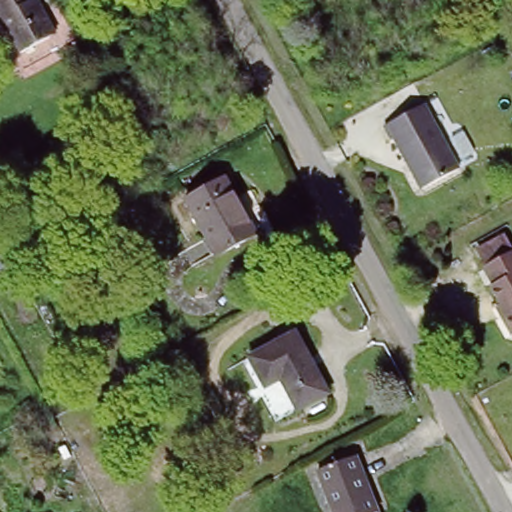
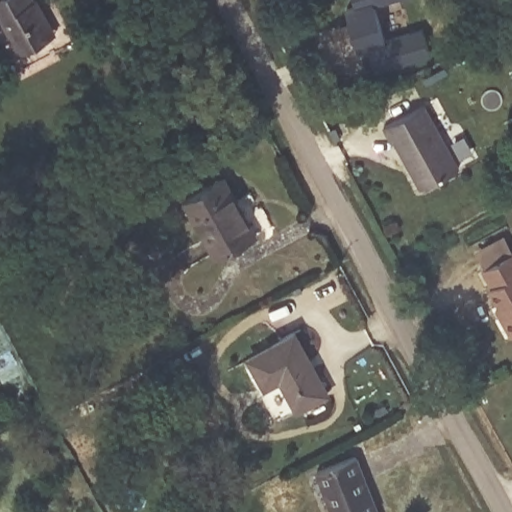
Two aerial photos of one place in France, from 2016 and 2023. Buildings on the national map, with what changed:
unchanged [(18,47),(0,14),(0,0),(40,0),(45,11),(55,28),(48,31),(18,47)]
new [(422,25),(431,54),(375,70),(369,47),(360,50),(347,8),(357,6),(356,0),(385,0),(395,33),(422,25)]
new [(357,42),(339,47),(334,29),(352,23),(357,42)]
unchanged [(461,164),(422,185),(395,134),(392,136),(385,122),(426,100),(461,164)]
unchanged [(225,170),(253,224),(215,244),(187,190),(225,170)]
unchanged [(505,311),(510,308),(505,298),(495,279),(496,278),(487,260),(512,248),(512,324),(505,311)]
unchanged [(297,333),(327,389),(296,407),(280,378),(268,385),(252,357),(297,333)]
unchanged [(334,512),(318,470),(356,456),(376,512),(334,512)]

